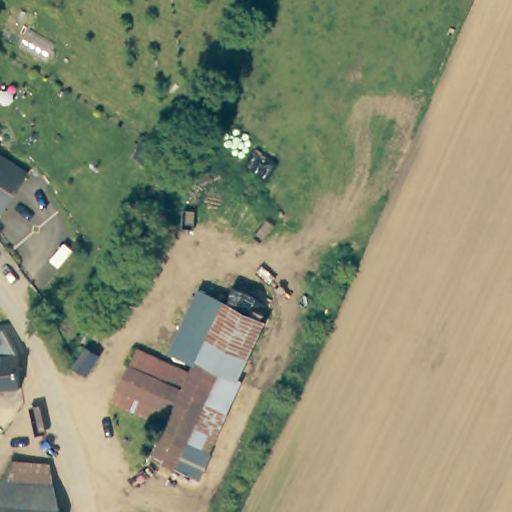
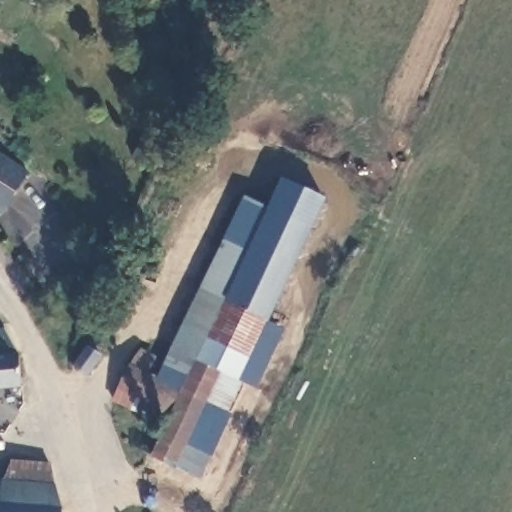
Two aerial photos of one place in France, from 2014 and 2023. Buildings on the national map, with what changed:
unchanged [(25,170),(0,208),(0,151),(25,170)]
new [(198,292),(244,194),(272,203),(288,173),(337,187),(264,322),(198,292)]
unchanged [(196,478),(151,457),(166,424),(113,400),(134,352),(161,364),(195,290),(264,322),(238,380),(241,381),(196,478)]
unchanged [(0,388),(0,340),(10,339),(18,354),(20,387),(0,388)]
unchanged [(87,347),(100,355),(87,375),(73,367),(87,347)]
unchanged [(0,502),(0,482),(11,461),(49,463),(60,508),(0,502)]
unchanged [(59,512),(0,512),(0,502),(60,508),(59,512)]

